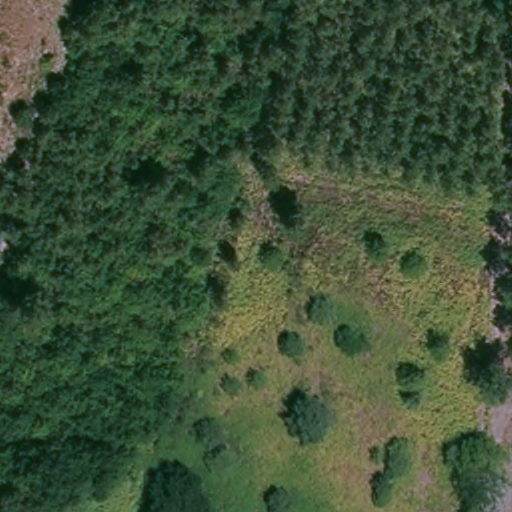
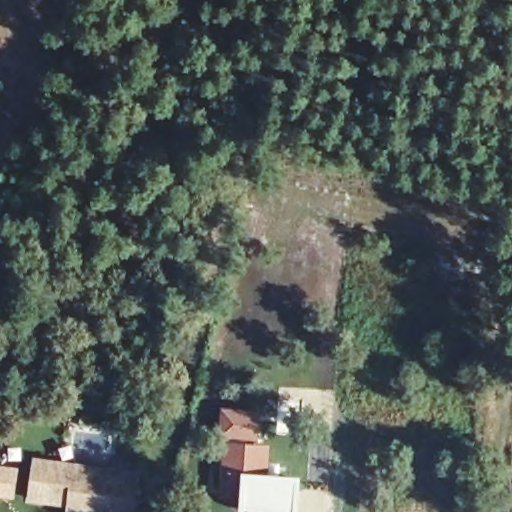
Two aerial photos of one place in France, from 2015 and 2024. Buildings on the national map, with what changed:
new [(219,405),(261,407),(260,441),(221,436),(217,436),(219,405)]
new [(221,436),(260,441),(270,442),(269,472),(239,470),(239,475),(226,474),(223,491),(218,490),(221,436)]
new [(141,475),(139,485),(135,512),(72,512),(73,502),(34,496),(40,459),(80,465),(141,475)]
new [(239,470),(269,472),(300,475),(297,512),(239,512),(239,475),(239,470)]

